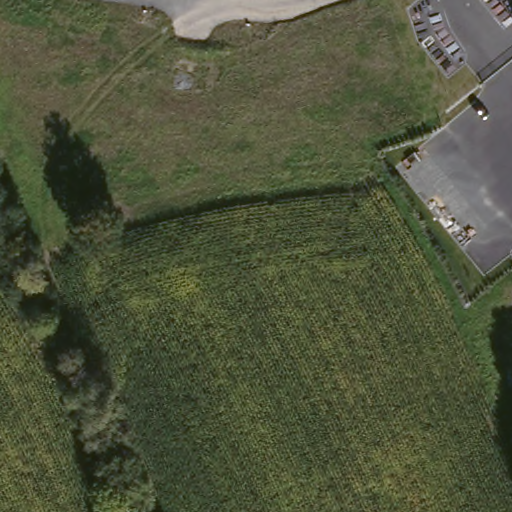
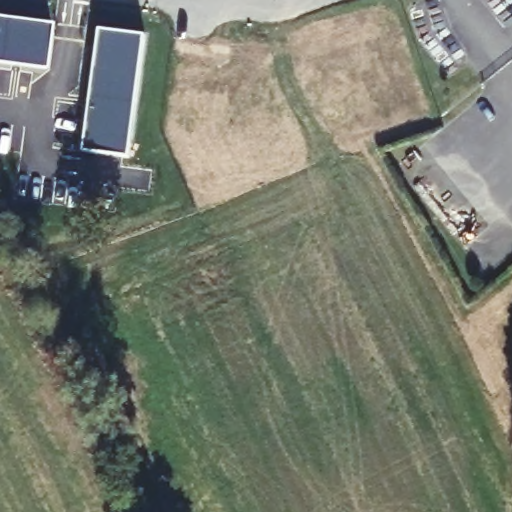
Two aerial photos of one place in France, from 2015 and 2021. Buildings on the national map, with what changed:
new [(45,69),(0,63),(0,16),(51,23),(45,69)]
new [(99,30),(145,35),(129,158),(83,152),(99,30)]

